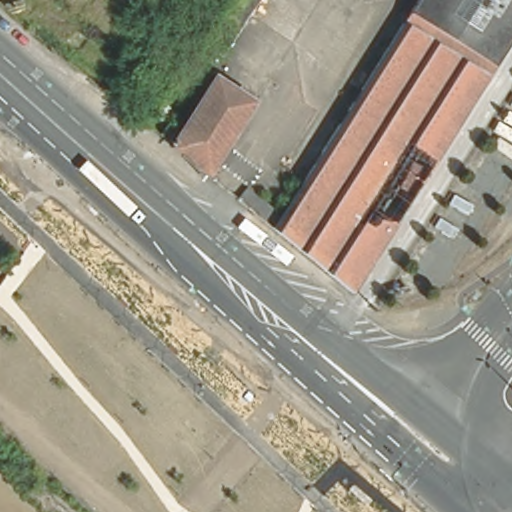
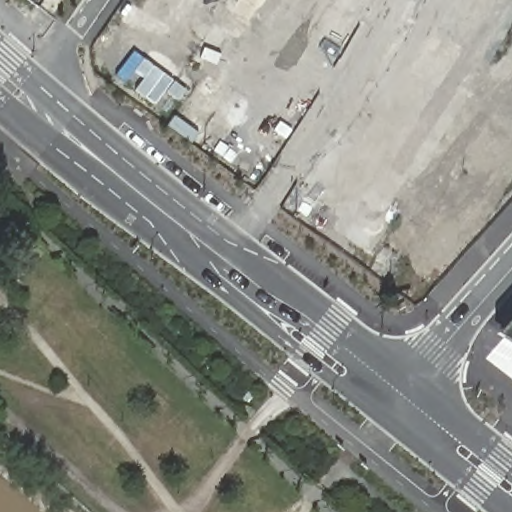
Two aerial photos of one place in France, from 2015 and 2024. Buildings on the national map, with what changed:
demolished [(257,0),(223,52),(203,38),(228,0),(257,0)]
demolished [(242,190),(251,178),(285,205),(415,0),(512,0),(512,38),(357,283),(277,218),(242,190)]
demolished [(217,71),(254,96),(209,168),(173,140),(217,71)]
new [(512,344),(496,335),(512,320),(512,344)]

